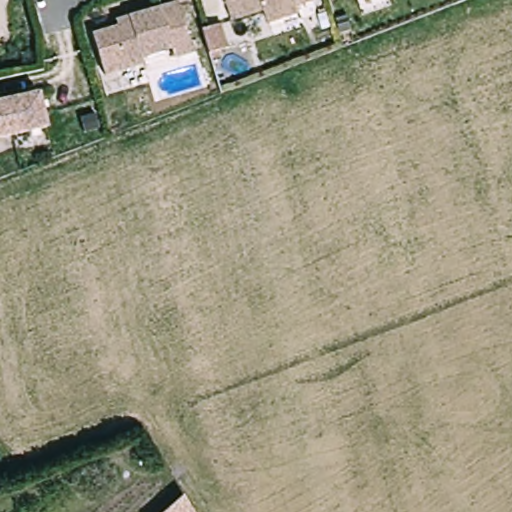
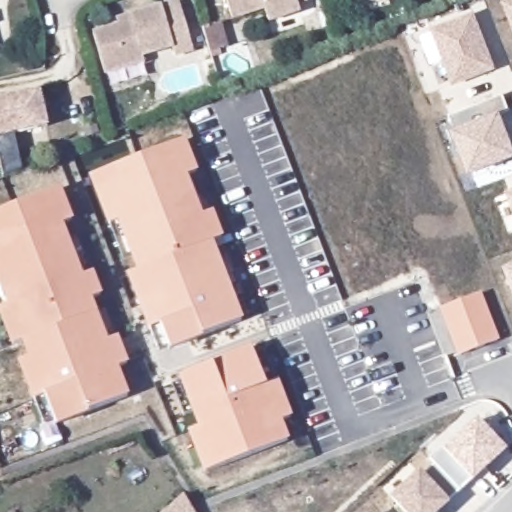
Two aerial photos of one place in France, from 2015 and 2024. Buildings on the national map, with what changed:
unchanged [(113,14),(125,10),(157,0),(176,0),(189,45),(171,50),(168,41),(138,50),(141,56),(101,67),(89,27),(114,20),(113,14)]
unchanged [(296,5),(264,15),(260,2),(228,13),(224,0),(294,0),(296,5)]
new [(503,0),(504,0),(512,0),(512,25),(503,0)]
new [(497,69),(454,85),(432,28),(475,12),(497,69)]
unchanged [(206,37),(203,27),(222,21),(229,46),(211,52),(206,37)]
unchanged [(48,126),(0,137),(0,100),(40,91),(48,126)]
new [(512,137),(512,159),(471,174),(454,131),(456,130),(451,116),(505,95),(511,110),(504,115),(512,137)]
new [(201,335),(203,338),(169,350),(168,345),(158,350),(151,329),(148,330),(125,274),(136,270),(131,256),(122,258),(109,225),(108,226),(89,176),(186,139),(198,171),(187,175),(203,215),(214,210),(224,237),(213,241),(244,319),(201,335)]
new [(83,275),(93,271),(101,293),(92,297),(107,340),(118,335),(128,362),(118,365),(128,393),(88,410),(88,414),(56,426),(55,420),(45,423),(36,401),(34,402),(17,360),(28,356),(21,341),(11,345),(0,314),(0,210),(60,186),(73,219),(63,224),(83,275)]
new [(507,194),(512,191),(512,207),(507,194)]
new [(503,266),(512,263),(512,287),(503,266)]
new [(458,356),(439,310),(482,293),(499,340),(458,356)]
new [(289,438),(202,472),(186,431),(196,426),(191,412),(184,415),(172,385),(181,383),(179,375),(213,362),(251,347),(266,386),(279,381),(292,416),(282,420),(289,438)]
new [(435,465),(431,460),(444,451),(478,418),(507,447),(441,512),(402,512),(389,498),(419,470),(424,475),(435,465)]
unchanged [(196,512),(162,512),(183,492),(196,512)]

